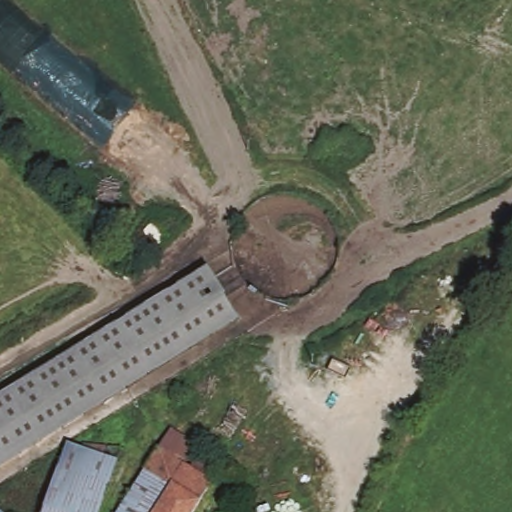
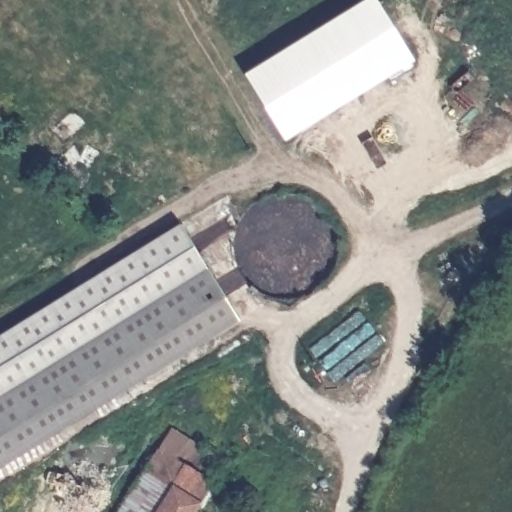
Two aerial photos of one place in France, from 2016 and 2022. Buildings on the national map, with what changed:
new [(243,73),(362,0),(377,0),(412,60),(283,139),(243,73)]
new [(0,394),(0,333),(177,224),(203,268),(0,394)]
unchanged [(203,268),(236,323),(0,467),(0,394),(203,268)]
unchanged [(103,489),(56,470),(65,445),(110,465),(103,489)]
unchanged [(164,455),(184,467),(190,457),(200,454),(208,458),(212,466),(217,473),(234,483),(225,499),(204,489),(191,512),(116,512),(153,449),(164,455)]
unchanged [(56,470),(103,489),(93,512),(38,512),(56,470)]

